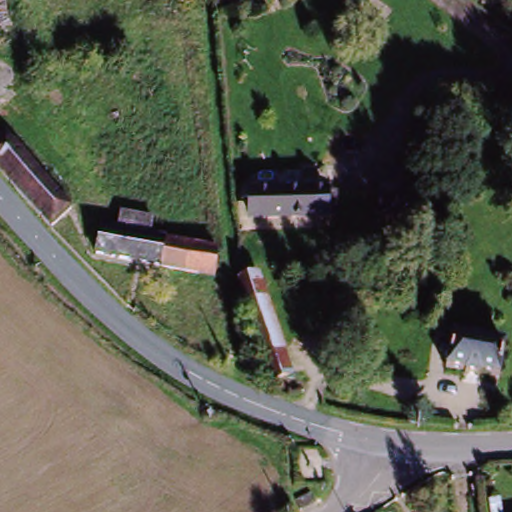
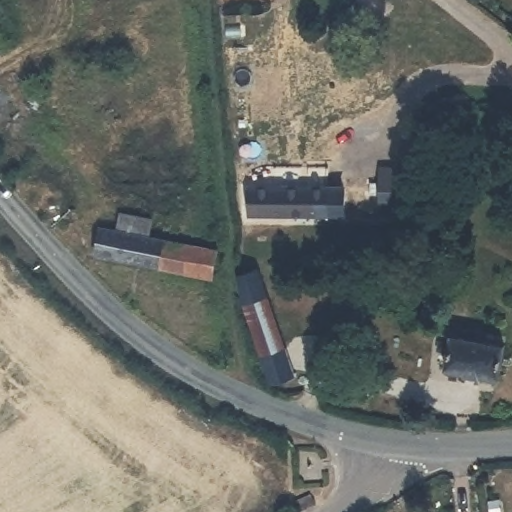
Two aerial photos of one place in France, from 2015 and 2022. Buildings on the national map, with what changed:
unchanged [(52,232),(0,173),(0,128),(76,210),(52,232)]
unchanged [(415,170),(416,216),(378,216),(377,168),(415,170)]
unchanged [(330,195),(330,221),(242,218),(243,192),(330,195)]
unchanged [(96,255),(97,245),(101,227),(119,231),(122,212),(152,216),(149,236),(212,247),(207,276),(96,255)]
unchanged [(229,282),(260,274),(262,283),(288,378),(283,380),(259,387),(229,282)]
unchanged [(506,355),(501,387),(488,384),(485,388),(472,385),(473,381),(448,375),(451,364),(440,361),(443,350),(453,352),(455,344),(506,355)]

